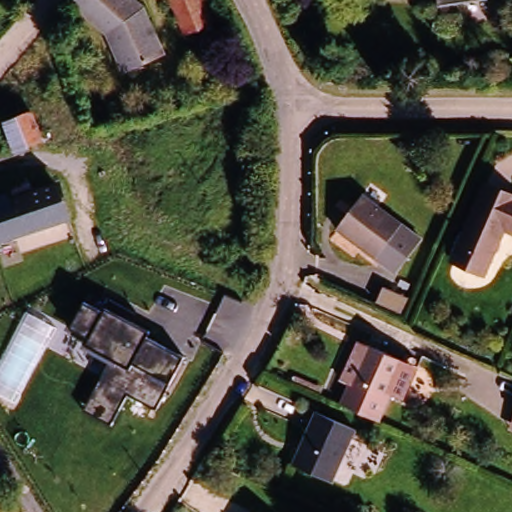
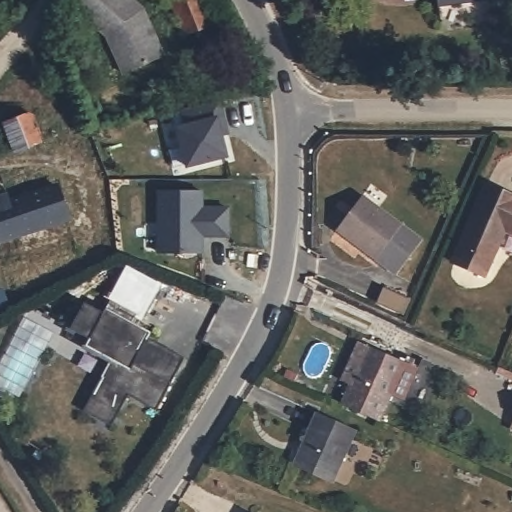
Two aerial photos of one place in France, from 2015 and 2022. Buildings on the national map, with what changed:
unchanged [(168,51),(129,68),(112,29),(77,0),(145,0),(147,2),(168,51)]
unchanged [(203,0),(212,23),(185,34),(171,1),(173,0),(203,0)]
unchanged [(438,0),(487,0),(440,8),(438,0)]
new [(193,126),(189,110),(226,101),(235,134),(228,136),(234,157),(194,168),(184,128),(193,126)]
unchanged [(0,129),(25,119),(40,114),(50,142),(35,147),(10,156),(0,129)]
unchanged [(512,234),(505,232),(485,276),(452,262),(486,185),(512,196),(512,234)]
unchanged [(64,189),(73,220),(0,243),(0,209),(64,189)]
new [(201,193),(202,218),(210,217),(209,209),(228,209),(228,237),(210,237),(210,235),(202,235),(203,254),(160,255),(157,194),(201,193)]
unchanged [(421,240),(395,274),(336,230),(363,195),(421,240)]
unchanged [(407,298),(400,312),(388,306),(395,292),(407,298)]
unchanged [(104,313),(107,308),(148,329),(144,337),(183,357),(171,383),(156,409),(127,394),(112,422),(86,409),(110,359),(85,346),(88,337),(71,327),(85,303),(104,313)]
unchanged [(402,364),(416,371),(404,400),(390,393),(377,420),(342,404),(351,384),(342,380),(354,354),(360,342),(369,346),(403,362),(402,364)]
unchanged [(356,429),(332,482),(293,465),(317,412),(356,429)]
unchanged [(512,422),(512,429),(510,428),(512,422)]

